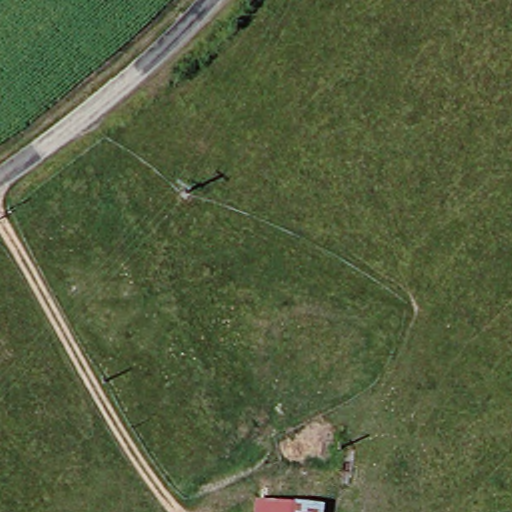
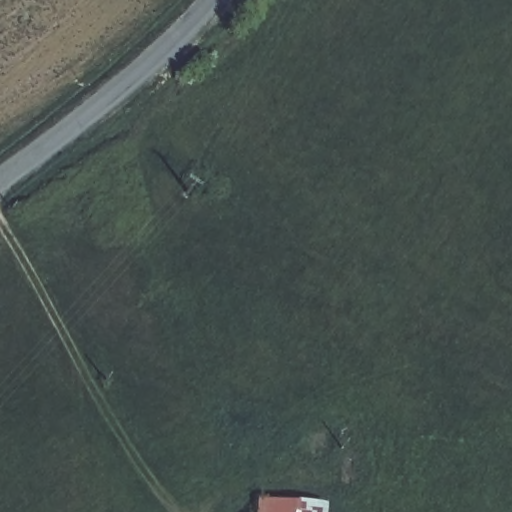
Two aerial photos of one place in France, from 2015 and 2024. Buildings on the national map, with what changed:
unchanged [(251,498),(266,499),(326,501),(325,512),(250,512),(251,498)]

